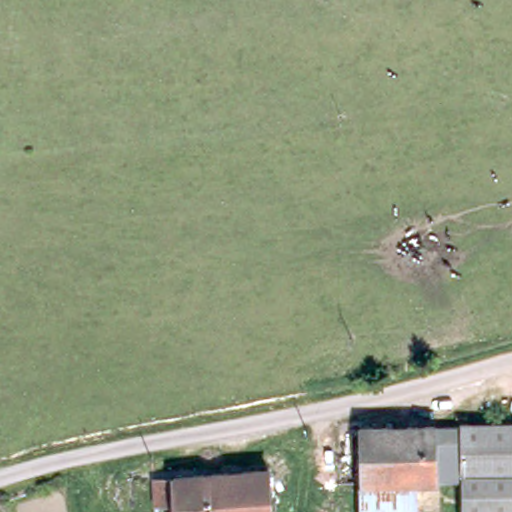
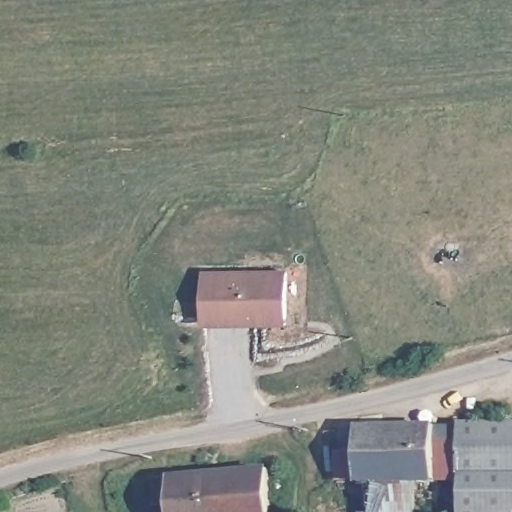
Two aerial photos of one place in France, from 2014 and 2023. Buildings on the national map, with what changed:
new [(287,268),(288,324),(204,324),(204,269),(287,268)]
unchanged [(512,422),(512,474),(458,478),(455,427),(512,422)]
unchanged [(455,427),(458,478),(459,482),(432,484),(429,429),(455,427)]
unchanged [(357,512),(352,432),(429,429),(432,484),(433,512),(357,512)]
unchanged [(176,512),(175,501),(153,503),(153,477),(272,470),(274,512),(176,512)]
new [(512,474),(512,512),(460,512),(458,478),(512,474)]

